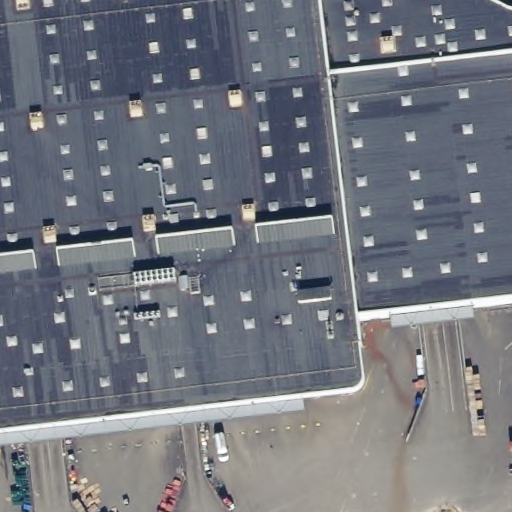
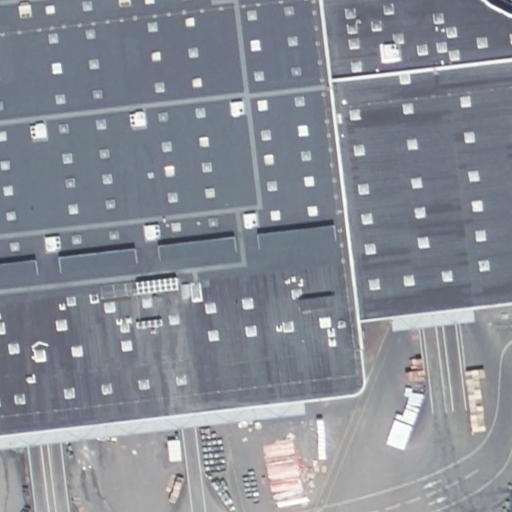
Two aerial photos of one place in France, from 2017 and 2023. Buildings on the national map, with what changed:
unchanged [(498,4),(507,8),(512,10),(512,197),(0,226),(0,0),(492,0),(498,4)]
unchanged [(512,197),(512,259),(0,286),(0,226),(512,197)]
unchanged [(364,379),(358,387),(340,391),(303,396),(0,431),(0,286),(512,259),(512,298),(357,317),(364,379)]

